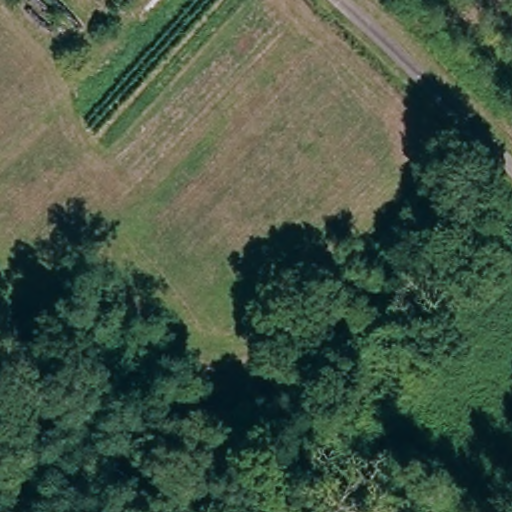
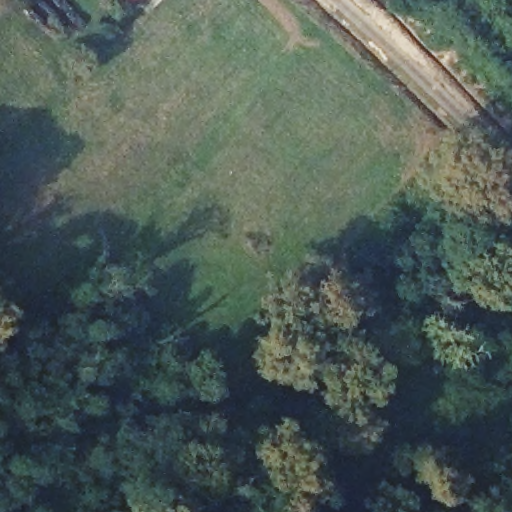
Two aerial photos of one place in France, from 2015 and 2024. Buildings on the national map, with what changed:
[]

